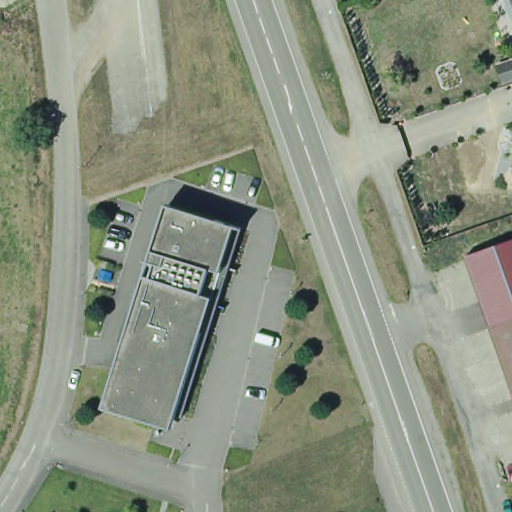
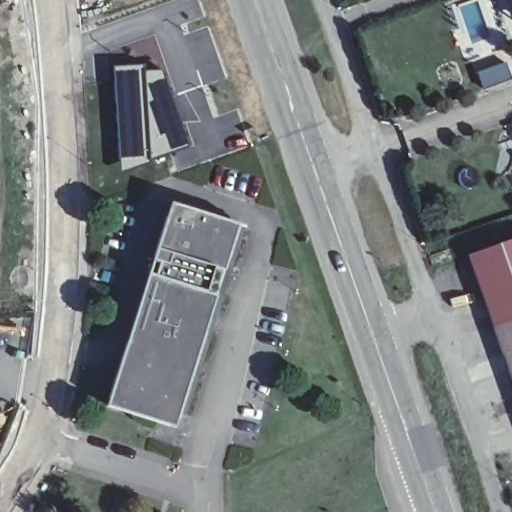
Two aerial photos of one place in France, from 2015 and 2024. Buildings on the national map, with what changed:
unchanged [(512,0),(512,15),(507,1),(495,5),(493,0),(512,0)]
new [(142,64),(145,116),(151,114),(160,138),(164,136),(169,151),(119,166),(110,66),(142,64)]
unchanged [(100,405),(170,197),(244,222),(174,429),(100,405)]
unchanged [(462,255),(512,237),(512,317),(487,326),(462,255)]
unchanged [(512,317),(512,396),(487,326),(512,317)]

